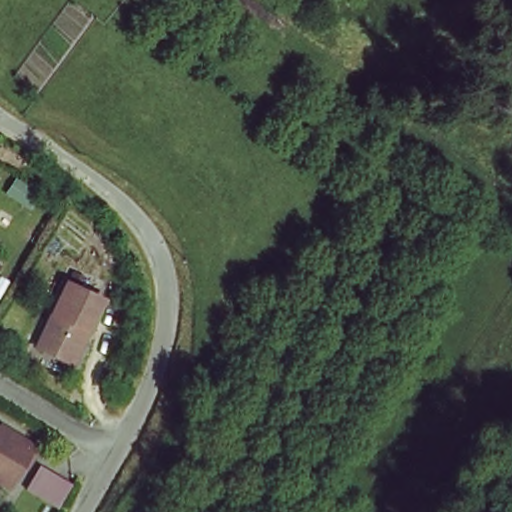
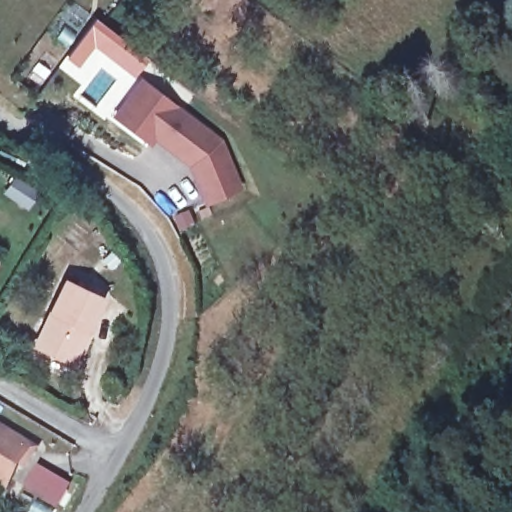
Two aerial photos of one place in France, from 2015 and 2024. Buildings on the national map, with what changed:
new [(152,147),(111,116),(140,77),(180,106),(223,140),(244,190),(205,207),(190,167),(155,142),(152,147)]
unchanged [(99,297),(85,325),(80,323),(65,356),(34,340),(63,277),(99,297)]
unchanged [(4,428),(5,427),(30,442),(20,459),(17,457),(1,482),(0,484),(0,426),(4,428)]
unchanged [(42,472),(68,488),(58,505),(31,488),(42,472)]

